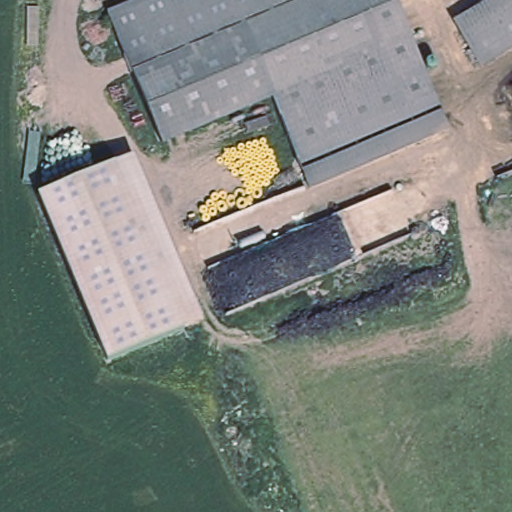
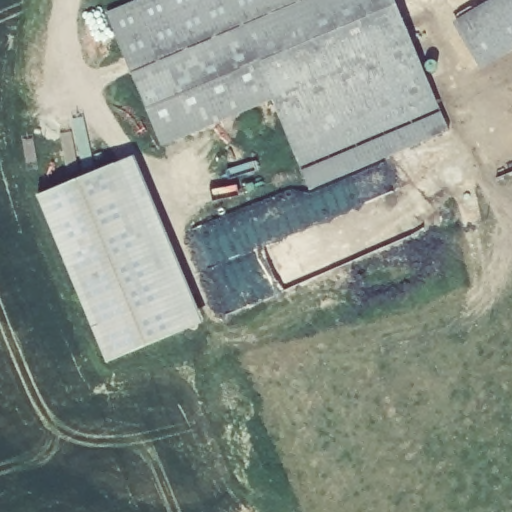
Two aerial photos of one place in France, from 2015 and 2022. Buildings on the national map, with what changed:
unchanged [(106,11),(134,0),(303,0),(241,25),(270,93),(160,141),(106,11)]
unchanged [(394,0),(442,119),(303,176),(270,93),(241,25),(303,0),(394,0)]
unchanged [(460,34),(512,2),(512,47),(480,66),(460,34)]
unchanged [(136,153),(205,320),(187,328),(111,360),(42,192),(117,161),(136,153)]

